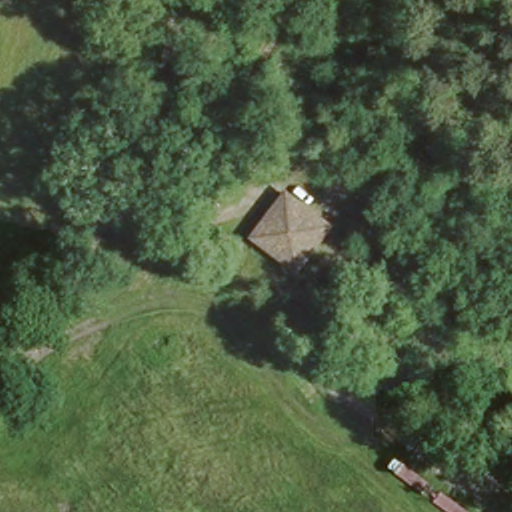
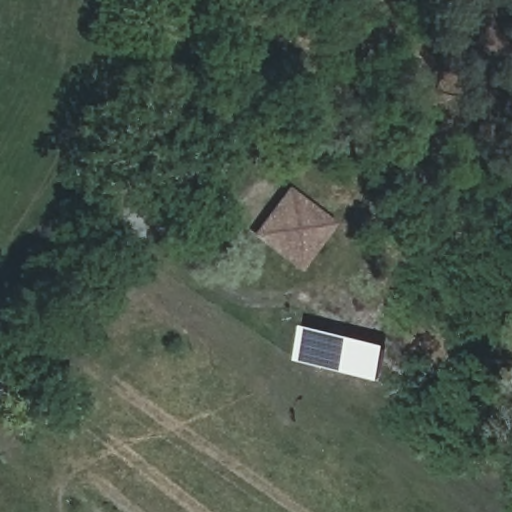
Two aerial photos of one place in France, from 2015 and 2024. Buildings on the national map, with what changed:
unchanged [(284,185),(333,220),(297,268),(251,234),(284,185)]
new [(382,382),(298,362),(304,326),(389,346),(382,382)]

